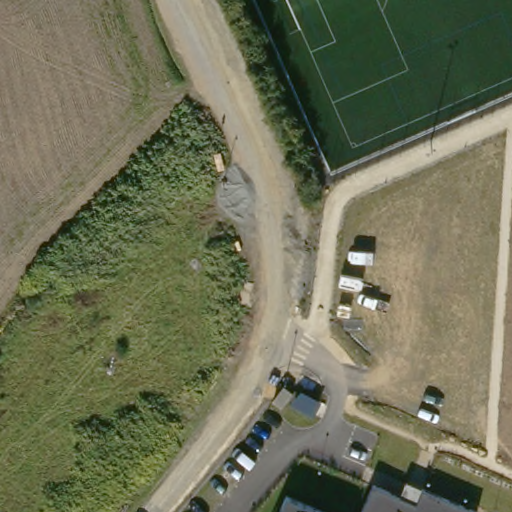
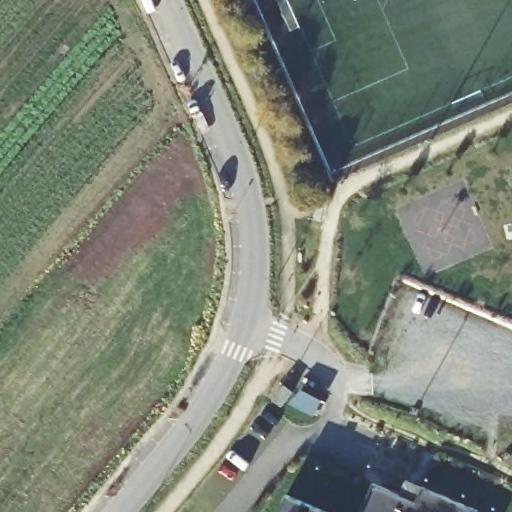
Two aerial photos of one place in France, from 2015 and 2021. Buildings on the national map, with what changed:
unchanged [(477,512),(361,512),(374,483),(417,501),(423,486),(479,508),(477,512)]
unchanged [(285,492),(331,512),(277,512),(285,492)]

